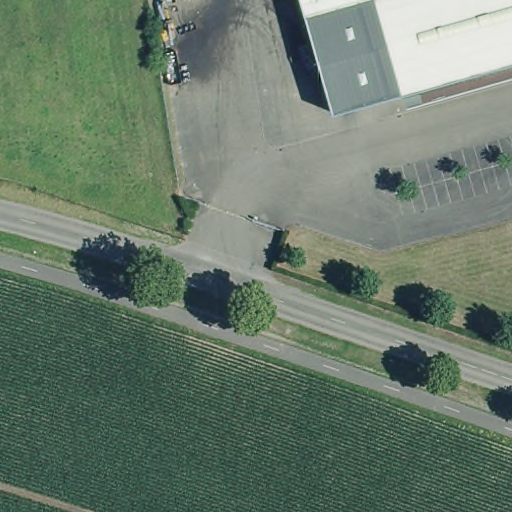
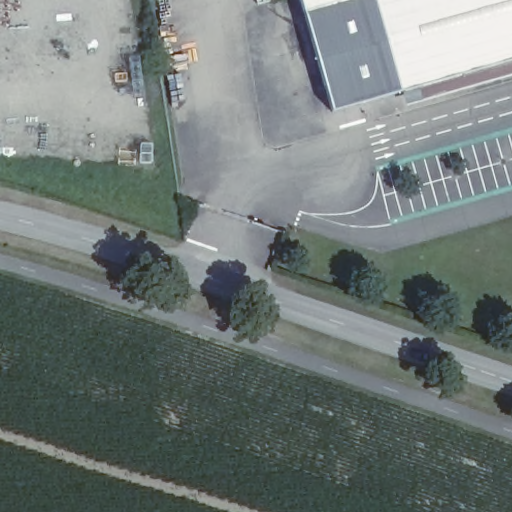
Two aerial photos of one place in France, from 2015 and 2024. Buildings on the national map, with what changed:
unchanged [(512,50),(512,74),(439,94),(422,99),(408,98),(404,91),(331,111),(299,0),(368,0),(388,78),(512,50)]
unchanged [(368,0),(512,0),(512,50),(388,78),(368,0)]

